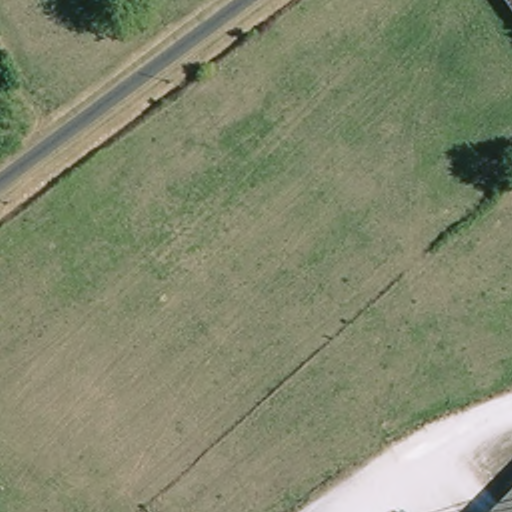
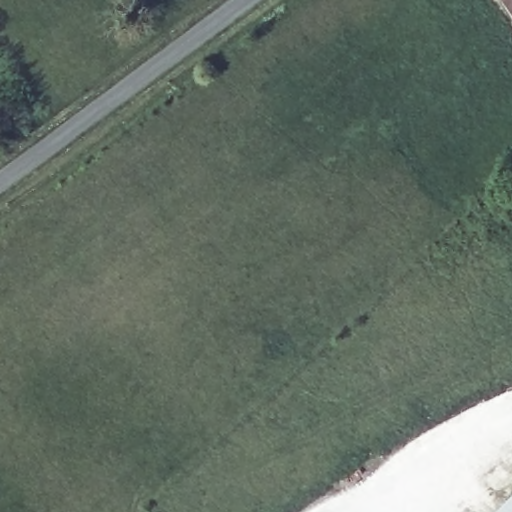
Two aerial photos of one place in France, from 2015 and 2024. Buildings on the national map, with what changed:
unchanged [(512,12),(504,0),(512,0),(512,12)]
unchanged [(512,512),(495,512),(512,496),(512,512)]

